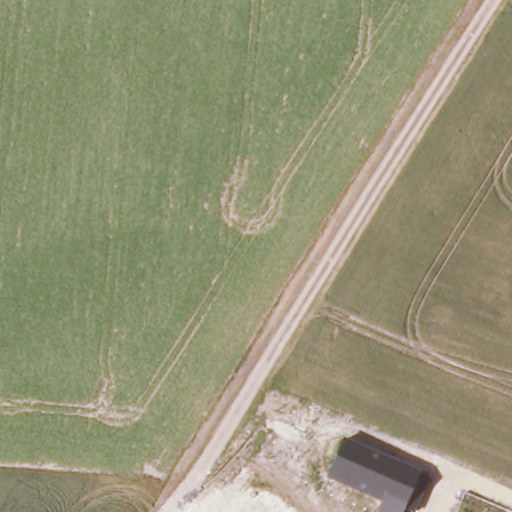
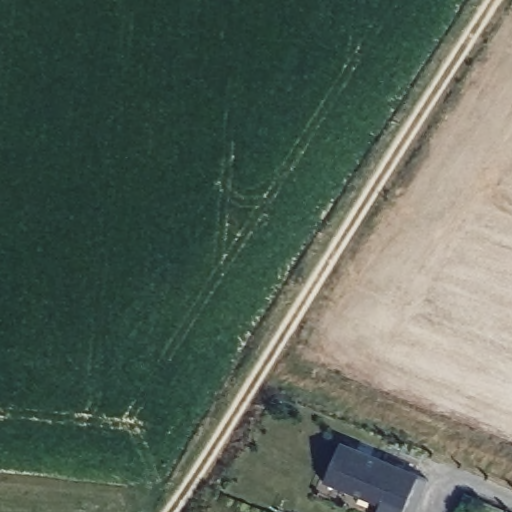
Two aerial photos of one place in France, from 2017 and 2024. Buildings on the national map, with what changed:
unchanged [(343,439),(420,472),(430,477),(416,512),(405,509),(404,512),(377,512),(380,504),(327,479),(343,439)]

